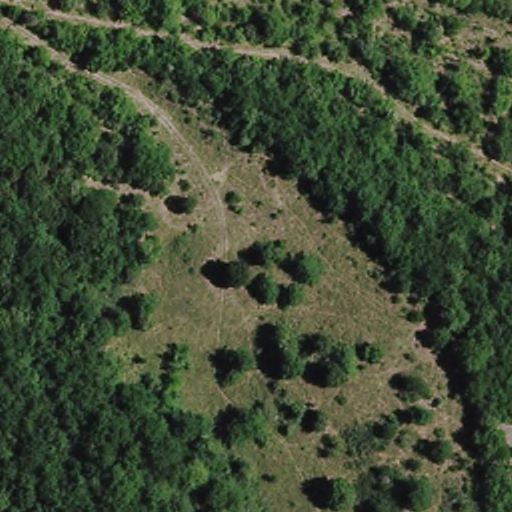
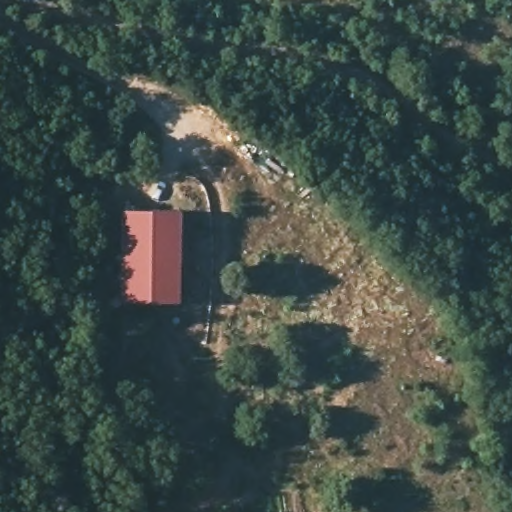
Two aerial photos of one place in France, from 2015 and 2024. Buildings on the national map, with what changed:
new [(180,211),(180,304),(120,303),(121,210),(180,211)]

